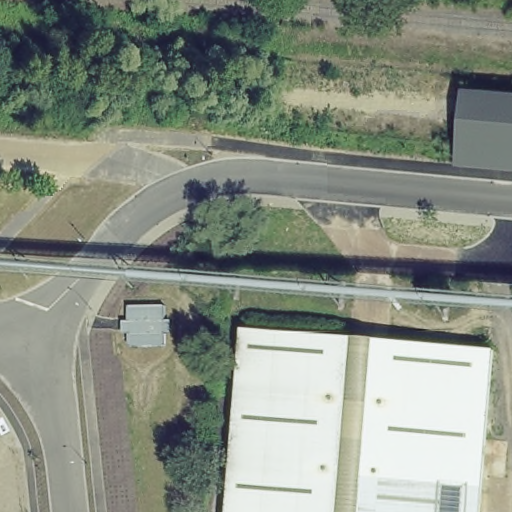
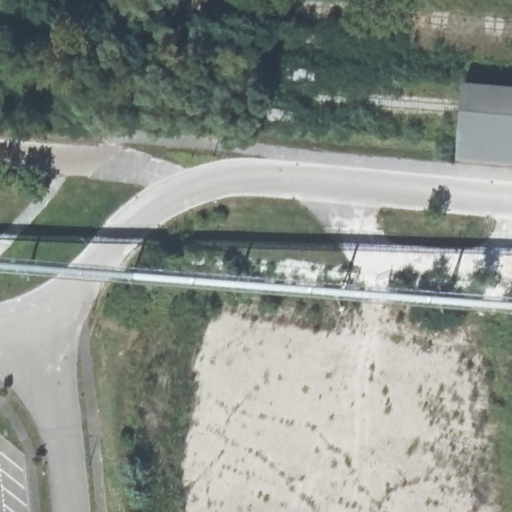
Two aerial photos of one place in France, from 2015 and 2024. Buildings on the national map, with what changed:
unchanged [(512,89),(512,163),(460,160),(460,154),(466,86),(512,89)]
demolished [(488,349),(474,512),(234,512),(250,332),(488,349)]

